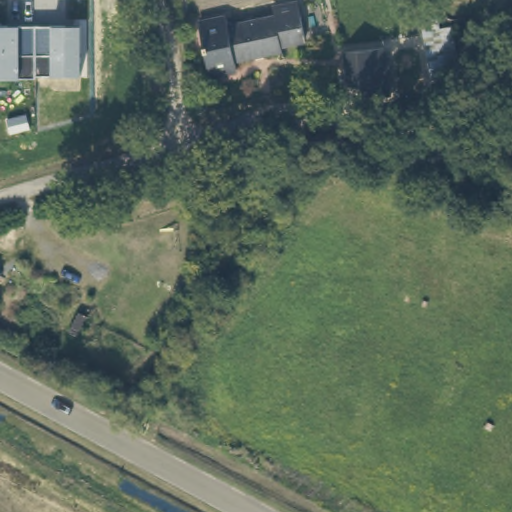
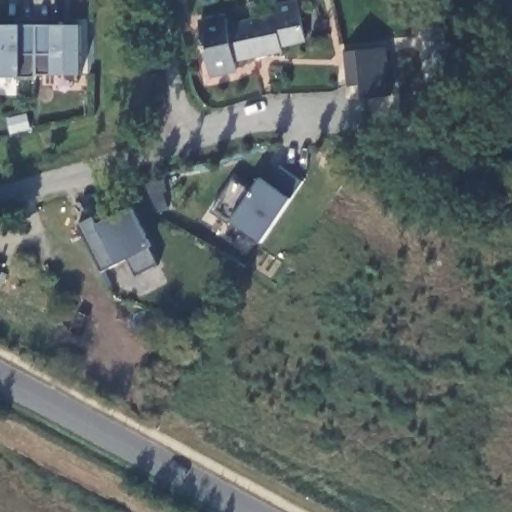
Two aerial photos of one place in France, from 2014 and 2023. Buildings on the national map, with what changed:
unchanged [(194,20),(220,14),(221,24),(270,17),(268,7),(294,1),(300,37),(275,40),(276,49),(228,55),(230,67),(204,72),(194,20)]
unchanged [(416,12),(431,10),(440,52),(451,50),(452,53),(455,70),(431,92),(428,78),(416,12)]
unchanged [(79,77),(0,79),(0,27),(78,27),(79,77)]
unchanged [(357,85),(343,85),(343,50),(384,49),(385,98),(357,98),(357,85)]
new [(234,179),(252,191),(261,178),(270,184),(282,166),(305,181),(263,242),(232,222),(230,226),(211,213),(234,179)]
new [(95,218),(102,230),(115,222),(114,218),(133,207),(155,246),(153,247),(162,264),(140,277),(130,260),(105,274),(80,227),(95,218)]

